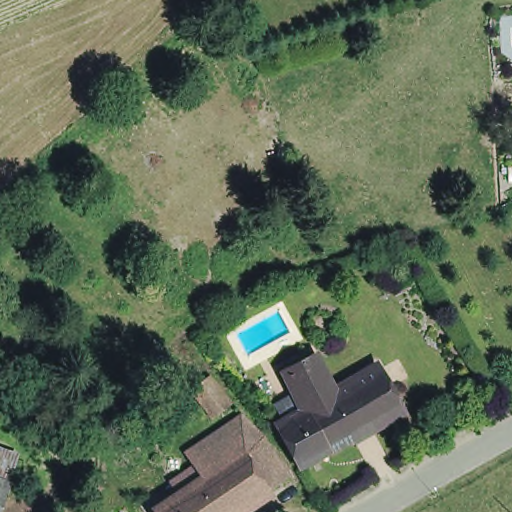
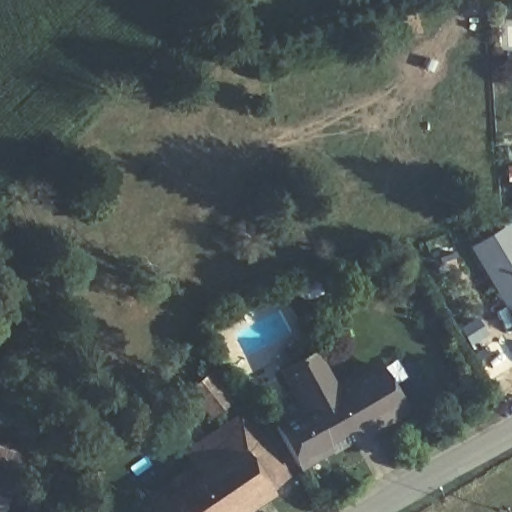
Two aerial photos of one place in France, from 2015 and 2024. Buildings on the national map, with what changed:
new [(510,220),(512,224),(512,313),(507,316),(467,246),(510,220)]
new [(477,314),(491,337),(472,350),(457,327),(477,314)]
unchanged [(298,460),(274,417),(283,412),(275,397),(292,388),(279,365),(310,345),(332,385),(305,400),(328,440),(329,443),(298,460)]
unchanged [(377,360),(399,400),(355,425),(332,385),(377,360)]
unchanged [(209,375),(229,401),(212,414),(192,388),(209,375)]
unchanged [(328,440),(305,400),(332,385),(355,425),(328,440)]
unchanged [(229,508),(202,469),(187,445),(240,410),(260,428),(287,468),(266,482),(240,443),(220,455),(247,495),(229,508)]
unchanged [(266,482),(247,495),(220,455),(240,443),(266,482)]
unchanged [(9,480),(32,492),(27,512),(0,512),(0,444),(15,450),(9,480)]
unchanged [(229,508),(222,512),(161,512),(154,502),(202,469),(229,508)]

